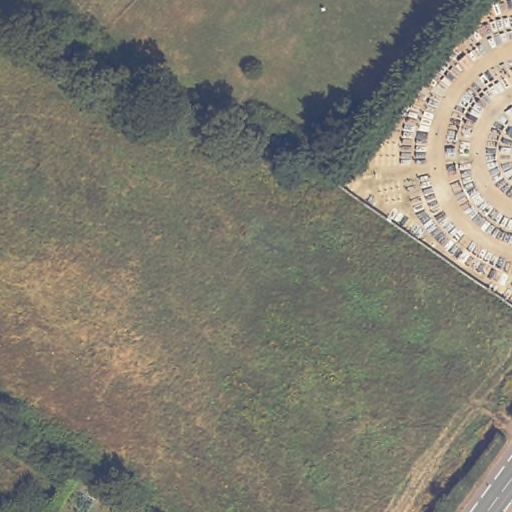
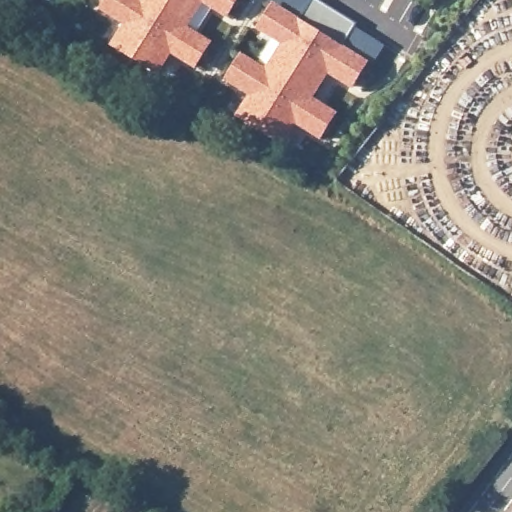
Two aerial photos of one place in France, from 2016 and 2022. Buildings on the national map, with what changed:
new [(109,0),(143,0),(144,0),(165,14),(138,58),(116,44),(129,23),(104,8),(109,0)]
new [(187,27),(165,14),(144,0),(204,0),(187,27)]
new [(229,14),(206,0),(238,0),(229,14)]
new [(354,85),(329,69),(313,98),(290,84),(269,71),(286,43),(262,27),(275,4),(300,20),(313,0),(322,0),(330,5),(344,13),(359,23),(344,47),(369,62),(354,85)]
new [(165,14),(187,27),(212,43),(198,65),(173,50),(159,71),(138,58),(165,14)]
new [(244,56),(269,71),(290,84),(264,129),(241,115),(254,94),(230,78),(244,56)]
new [(290,84),(313,98),(337,113),(324,136),(299,121),(285,142),(264,129),(290,84)]

